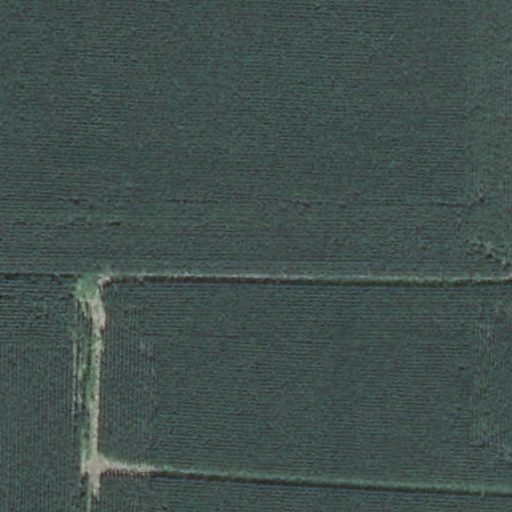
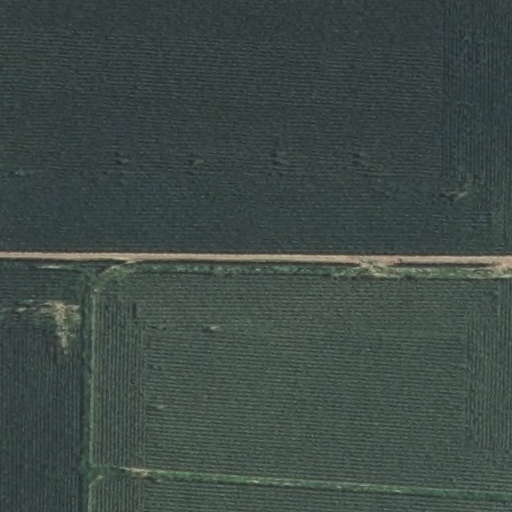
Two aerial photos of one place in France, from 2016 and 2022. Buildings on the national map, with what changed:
[]

